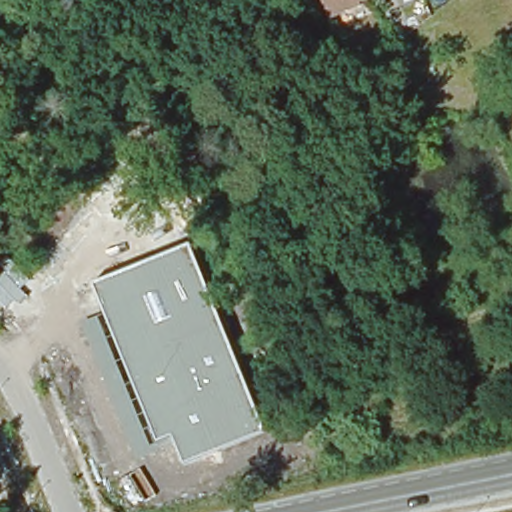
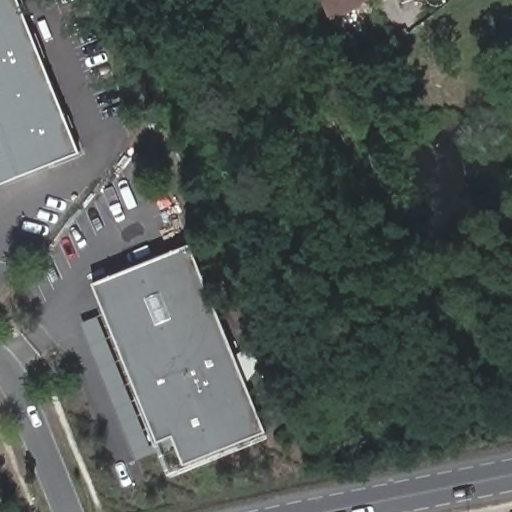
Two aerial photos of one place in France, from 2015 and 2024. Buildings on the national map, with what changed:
new [(0,185),(0,0),(20,0),(81,152),(0,185)]
unchanged [(353,5),(356,11),(324,25),(313,0),(367,0),(366,0),(353,5)]
unchanged [(381,0),(385,0),(381,1),(381,0)]
unchanged [(192,244),(266,431),(184,463),(175,442),(140,454),(82,320),(106,312),(95,283),(192,244)]

